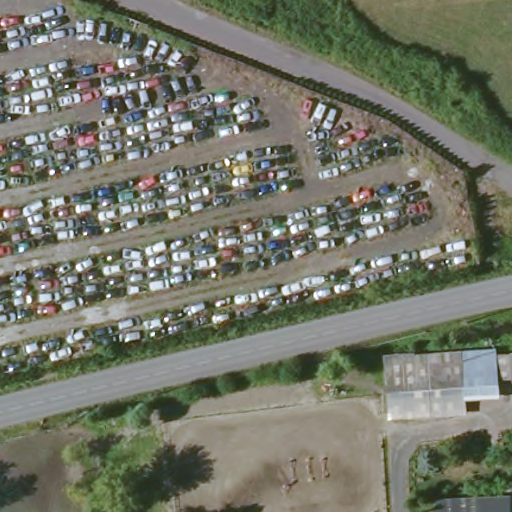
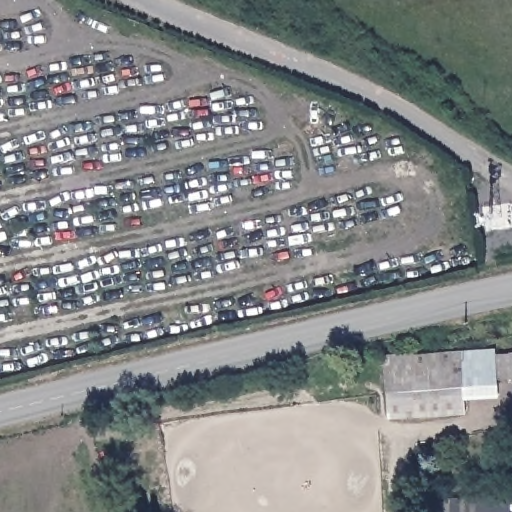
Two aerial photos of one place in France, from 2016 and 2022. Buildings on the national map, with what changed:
unchanged [(464,413),(386,419),(382,362),(493,351),(494,357),(512,356),(512,379),(495,381),(497,394),(463,397),(464,413)]
unchanged [(508,512),(441,512),(441,511),(441,504),(507,500),(507,502),(508,512)]

